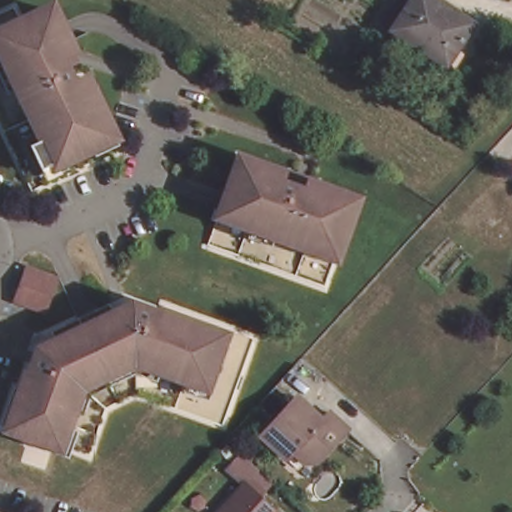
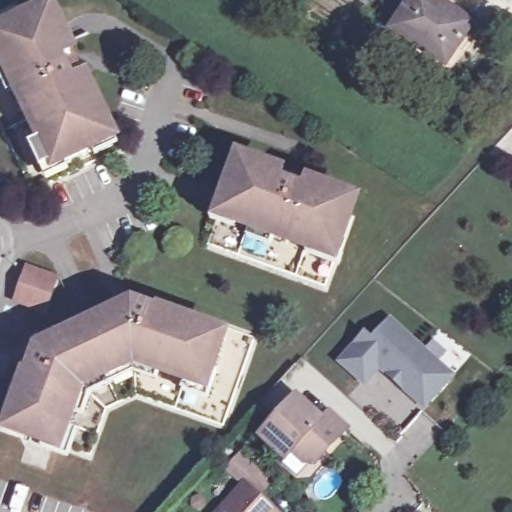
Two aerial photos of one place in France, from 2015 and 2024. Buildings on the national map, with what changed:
unchanged [(0,107),(0,1),(1,0),(21,0),(24,7),(35,2),(35,4),(45,0),(54,0),(73,43),(65,47),(75,67),(82,64),(88,77),(93,75),(115,123),(122,138),(32,177),(0,107)]
unchanged [(416,0),(432,0),(476,28),(449,69),(395,33),(416,0)]
unchanged [(220,206),(235,160),(238,151),(253,156),(284,167),(282,176),(303,183),(306,174),(351,189),(345,209),(350,210),(338,246),(327,280),(208,240),(220,206)]
unchanged [(62,280),(51,313),(22,303),(33,270),(62,280)]
unchanged [(44,437),(15,427),(14,429),(0,425),(0,391),(3,381),(8,367),(12,368),(19,346),(25,327),(33,323),(92,294),(100,290),(118,296),(140,303),(141,301),(143,295),(236,326),(205,415),(118,385),(89,399),(73,447),(44,437)]
new [(363,387),(335,361),(352,344),(364,330),(372,337),(391,317),(455,376),(425,411),(380,372),(363,387)]
unchanged [(320,464),(308,465),(296,454),(290,461),(265,439),(300,400),(323,421),(327,417),(330,413),(336,419),(350,431),(320,464)]
unchanged [(270,484),(257,499),(270,512),(222,512),(242,489),(225,474),(240,458),(270,484)]

